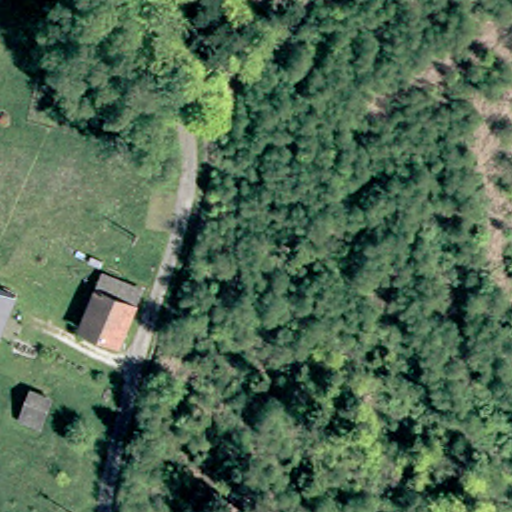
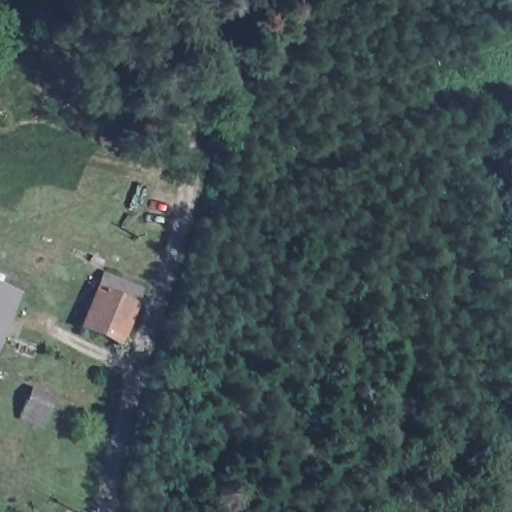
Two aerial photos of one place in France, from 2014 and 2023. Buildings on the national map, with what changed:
unchanged [(100,299),(105,285),(145,298),(140,313),(127,355),(87,343),(100,299)]
unchanged [(24,300),(0,359),(0,289),(24,300)]

